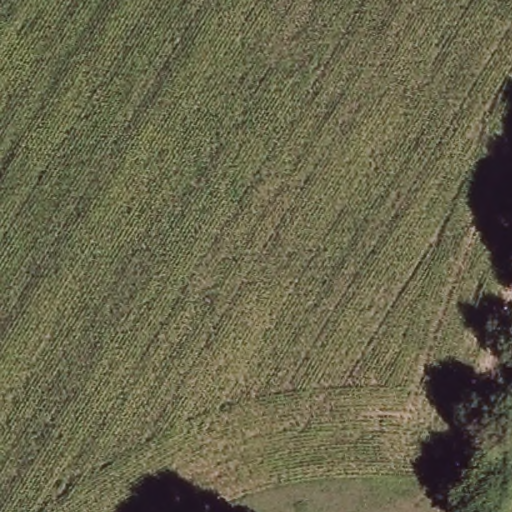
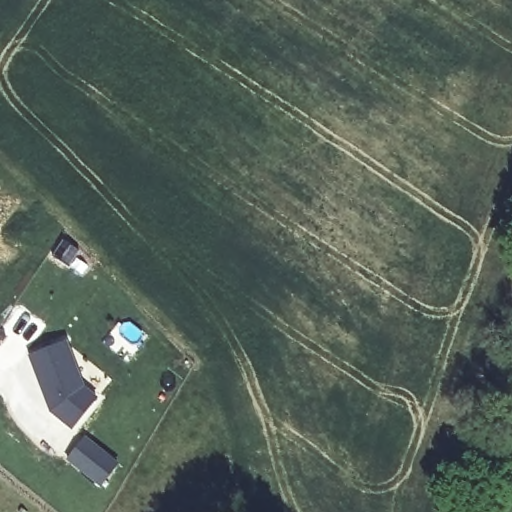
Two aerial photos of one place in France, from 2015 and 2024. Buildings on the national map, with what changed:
new [(60,345),(78,390),(91,400),(68,430),(46,413),(24,359),(60,345)]
new [(81,439),(115,465),(97,486),(64,461),(81,439)]

